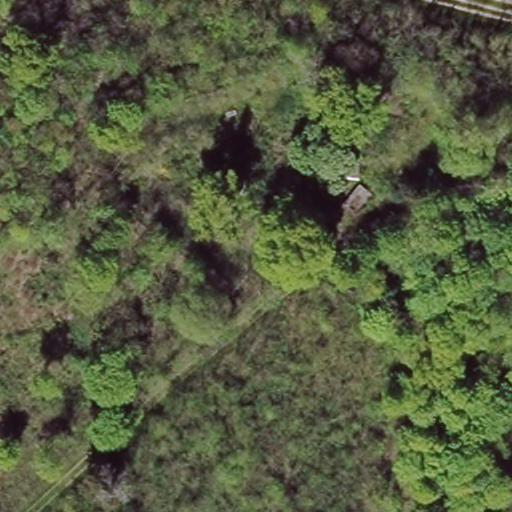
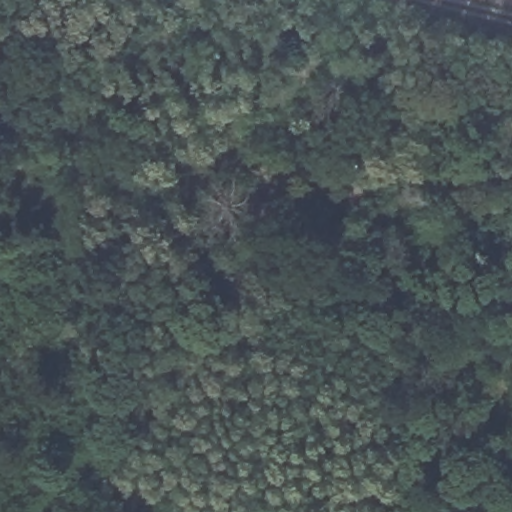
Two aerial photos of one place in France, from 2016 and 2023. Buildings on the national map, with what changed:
unchanged [(347,174),(318,173),(320,120),(348,124),(347,174)]

